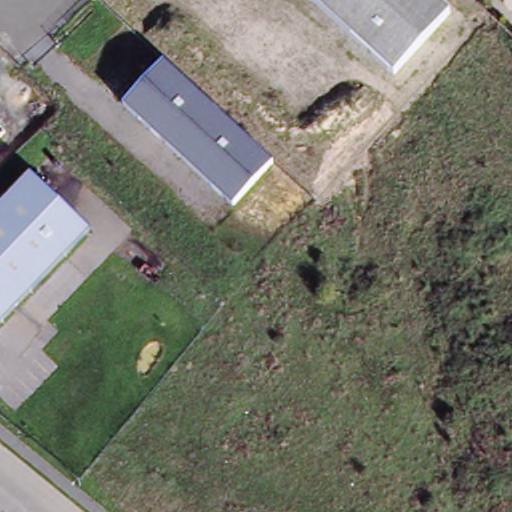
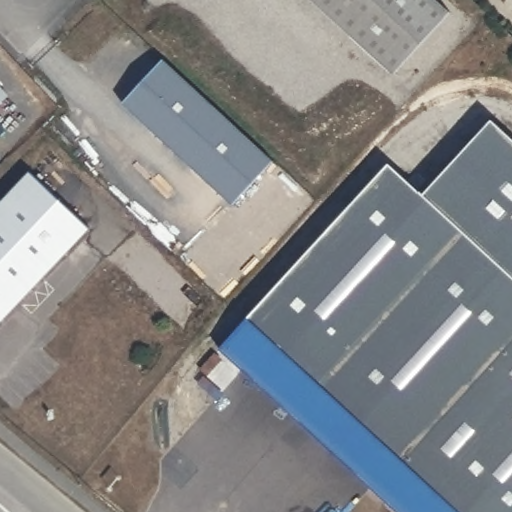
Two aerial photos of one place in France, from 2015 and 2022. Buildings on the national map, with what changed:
unchanged [(398,75),(315,0),(440,0),(454,14),(398,75)]
unchanged [(278,164),(233,209),(124,99),(164,59),(278,164)]
new [(219,348),(248,316),(390,163),(424,194),(493,119),(512,136),(512,512),(399,512),(219,348)]
unchanged [(91,229),(0,325),(0,203),(30,170),(91,229)]

